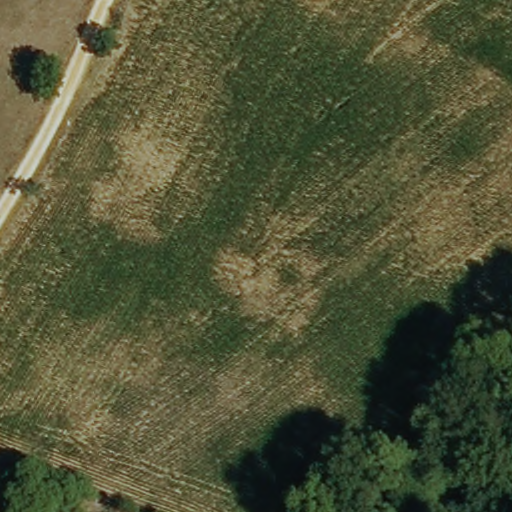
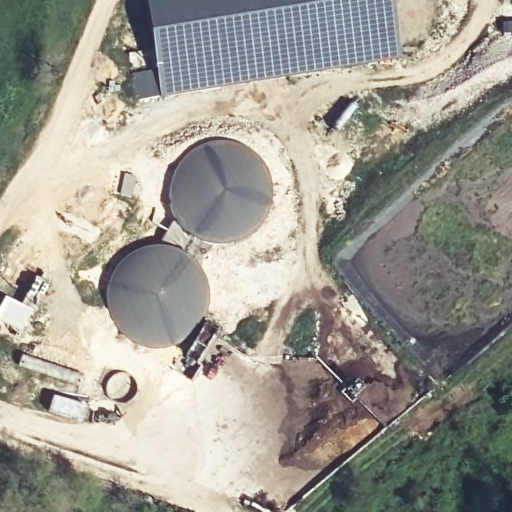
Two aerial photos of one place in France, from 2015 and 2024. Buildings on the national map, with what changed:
new [(161,100),(136,104),(132,75),(153,72),(144,0),(389,0),(400,64),(161,100)]

